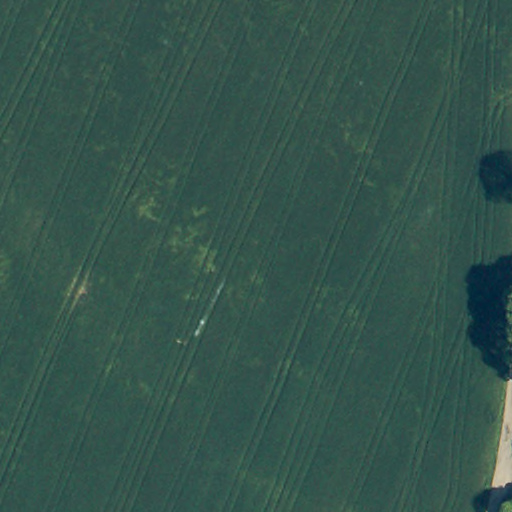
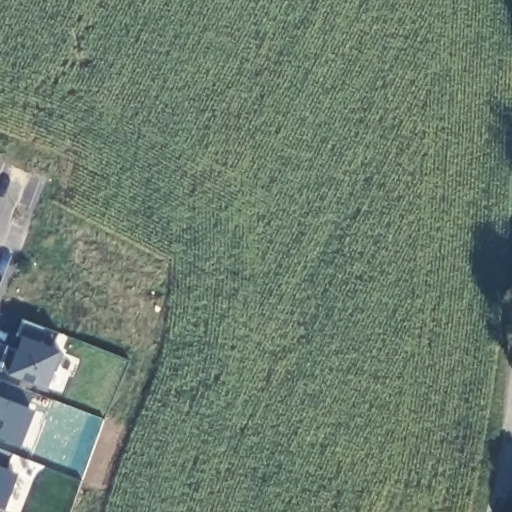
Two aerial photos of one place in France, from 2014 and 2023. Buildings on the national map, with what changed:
new [(57,333),(51,349),(62,352),(55,372),(50,370),(44,387),(0,370),(0,364),(7,346),(21,351),(26,340),(16,336),(23,319),(57,333)]
new [(32,393),(26,408),(31,409),(18,443),(0,436),(0,380),(32,393)]
new [(11,454),(5,470),(14,473),(1,507),(0,507),(0,449),(11,454)]

